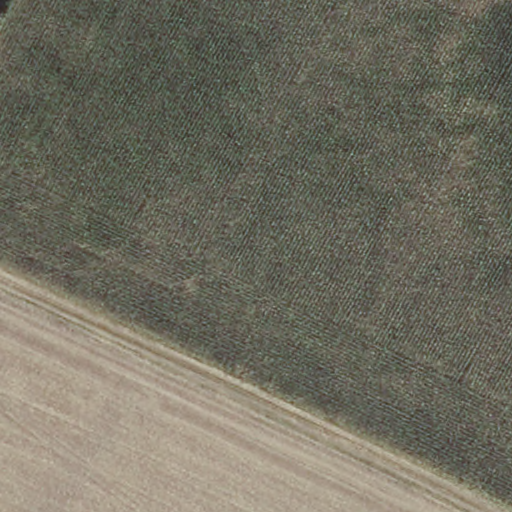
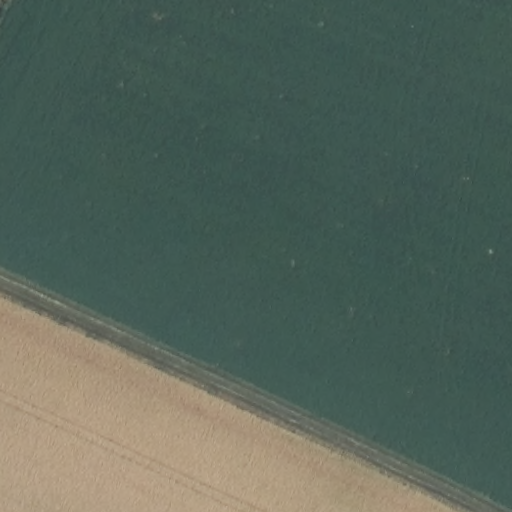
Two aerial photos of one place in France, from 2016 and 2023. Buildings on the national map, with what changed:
[]

